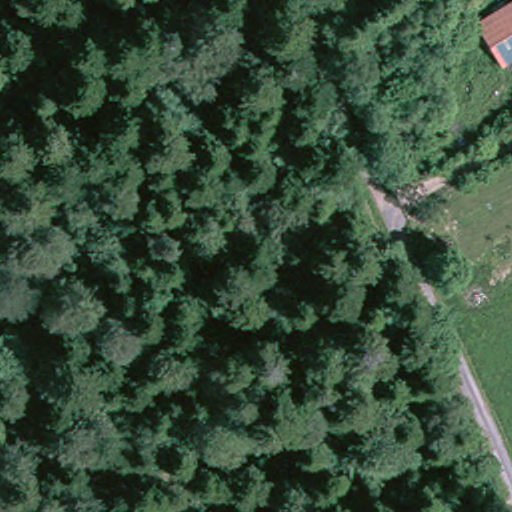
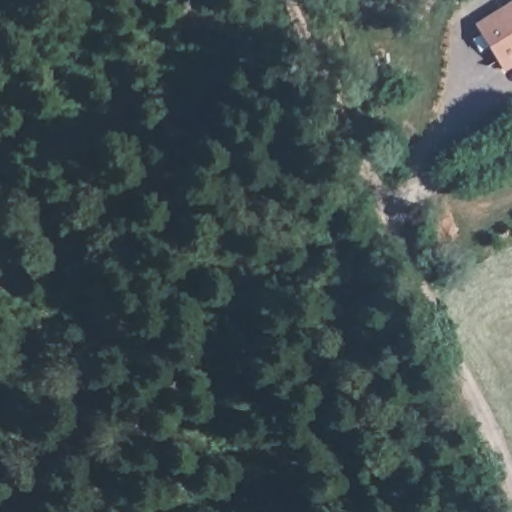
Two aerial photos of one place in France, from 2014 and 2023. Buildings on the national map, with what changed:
unchanged [(503,65),(473,17),(502,0),(512,0),(512,60),(503,65)]

